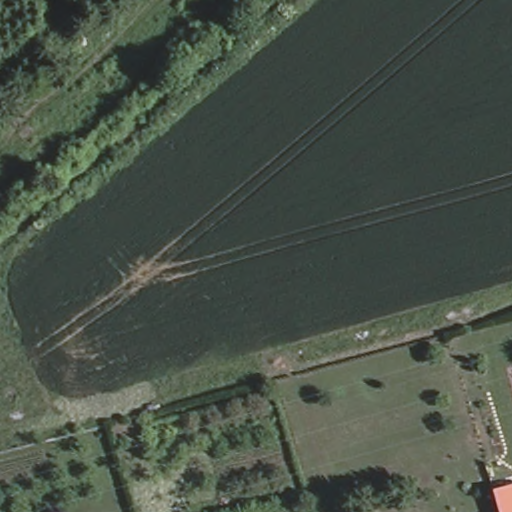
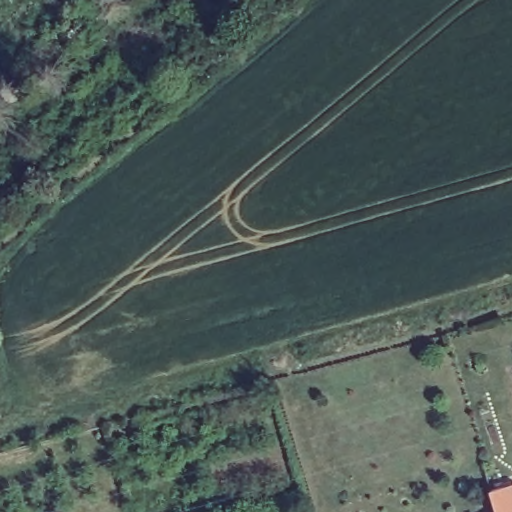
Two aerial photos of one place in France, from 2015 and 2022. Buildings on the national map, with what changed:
unchanged [(512,486),(512,512),(499,512),(492,492),(512,486)]

